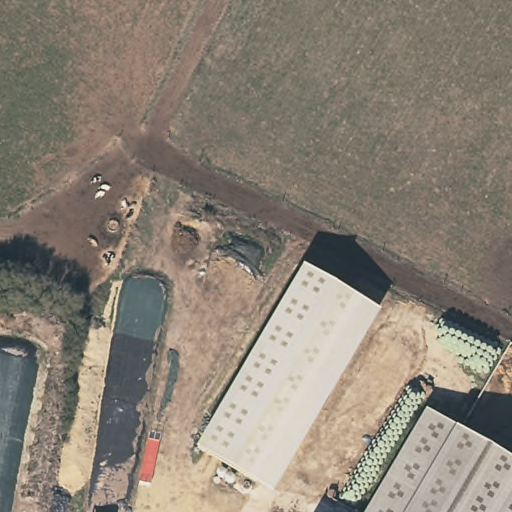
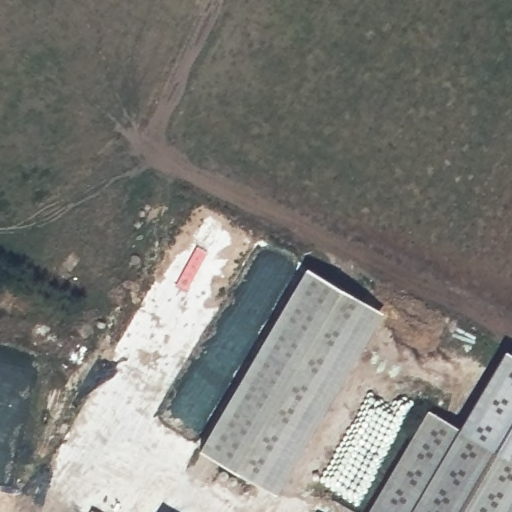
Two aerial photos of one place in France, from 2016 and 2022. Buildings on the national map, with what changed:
unchanged [(275,493),(200,449),(307,266),(383,312),(275,493)]
new [(505,348),(512,352),(512,458),(458,426),(505,348)]
unchanged [(371,512),(431,410),(512,458),(512,512),(371,512)]

